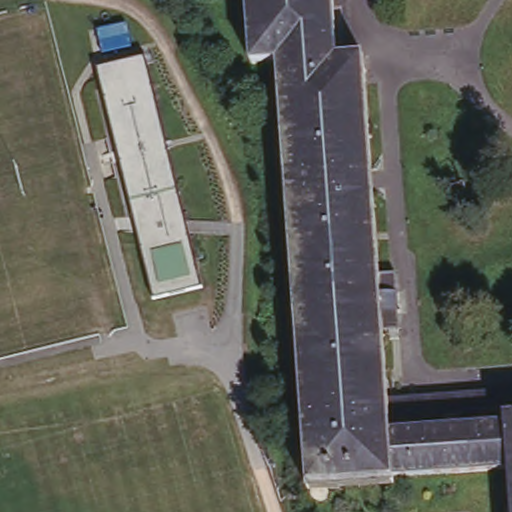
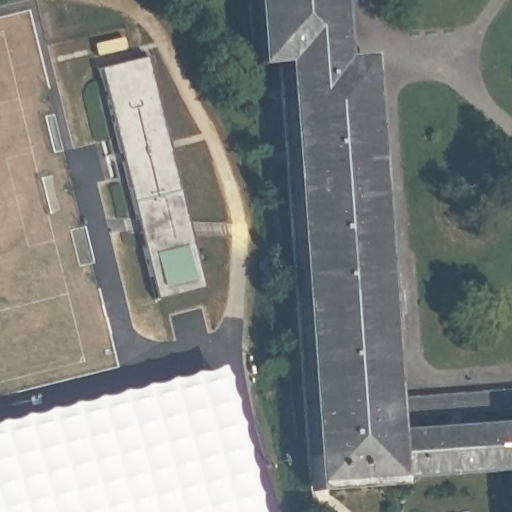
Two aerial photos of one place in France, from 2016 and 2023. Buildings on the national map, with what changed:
unchanged [(251,64),(247,0),(332,0),(336,57),(362,56),(378,275),(395,273),(400,329),(382,330),(387,400),(388,417),(389,431),(506,422),(505,417),(512,417),(512,512),(509,470),(310,483),(279,61),(251,64)]
unchanged [(145,57),(202,287),(151,301),(95,72),(145,57)]
unchanged [(388,417),(387,400),(512,391),(512,409),(388,417)]
new [(252,512),(0,512),(0,451),(219,392),(252,512)]

